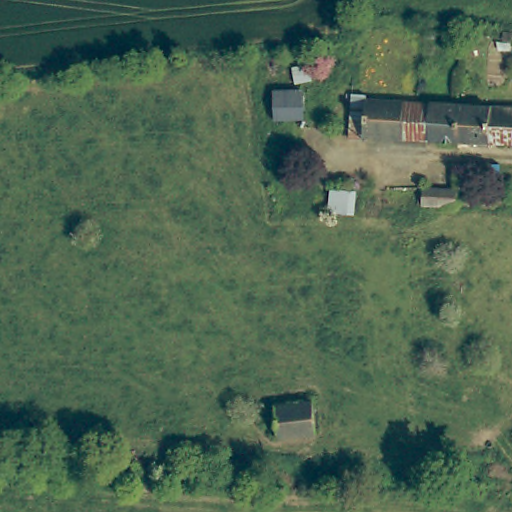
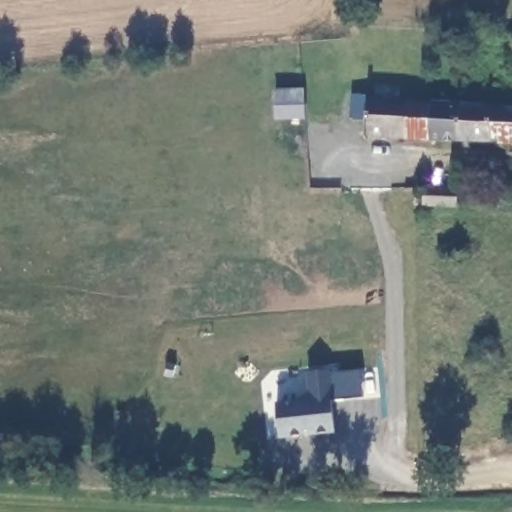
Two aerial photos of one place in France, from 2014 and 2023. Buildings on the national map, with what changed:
unchanged [(409,107),(406,139),(395,138),(368,136),(369,121),(356,120),(357,99),(370,100),(423,102),(409,107)]
unchanged [(462,142),(437,141),(406,139),(409,107),(423,102),(439,104),(464,105),(512,107),(512,145),(462,142)]
new [(296,405),(308,397),(303,373),(341,371),(343,405),(331,406),(333,435),(278,440),(276,406),(296,405)]
demolished [(315,403),(318,432),(282,436),(280,407),(315,403)]

